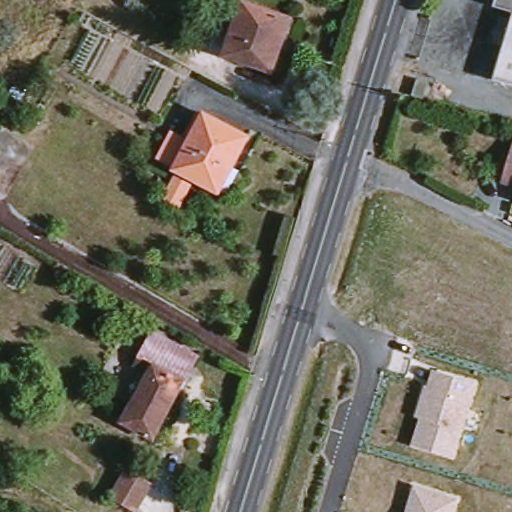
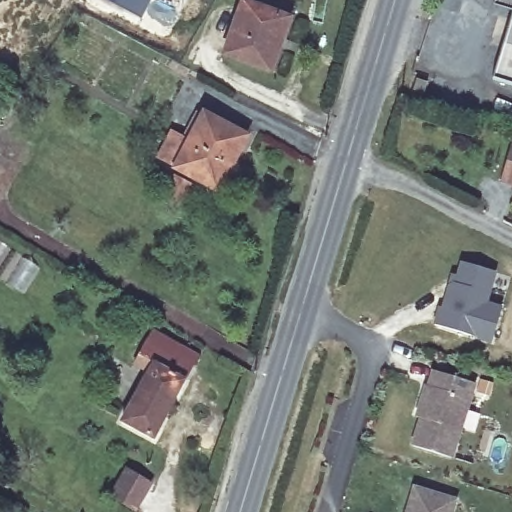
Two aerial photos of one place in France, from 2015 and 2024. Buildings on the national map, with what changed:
new [(109,0),(150,0),(141,17),(109,0)]
unchanged [(338,0),(350,0),(349,3),(338,0)]
unchanged [(494,9),(497,0),(512,0),(512,14),(494,9)]
unchanged [(244,7),(288,23),(269,76),(225,59),(244,7)]
unchanged [(494,80),(512,18),(512,85),(494,80)]
unchanged [(219,199),(191,186),(178,211),(163,198),(174,179),(153,160),(171,131),(186,140),(202,114),(249,138),(219,199)]
unchanged [(502,181),(512,146),(512,184),(502,181)]
new [(492,342),(434,323),(439,307),(442,307),(452,273),(456,275),(461,262),(497,272),(488,302),(501,306),(492,342)]
unchanged [(125,421),(160,362),(141,352),(151,337),(158,327),(209,360),(202,370),(157,440),(125,421)]
unchanged [(413,443),(421,416),(417,415),(424,387),(429,387),(434,368),(479,383),(456,457),(413,443)]
unchanged [(111,492),(114,489),(127,470),(148,485),(135,503),(132,507),(111,492)]
unchanged [(413,482),(460,497),(455,512),(404,512),(413,482)]

